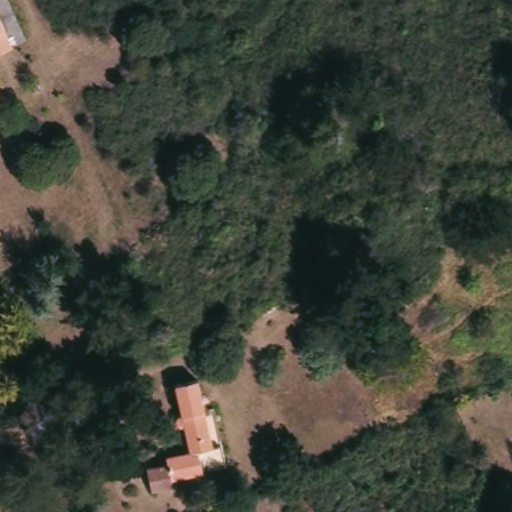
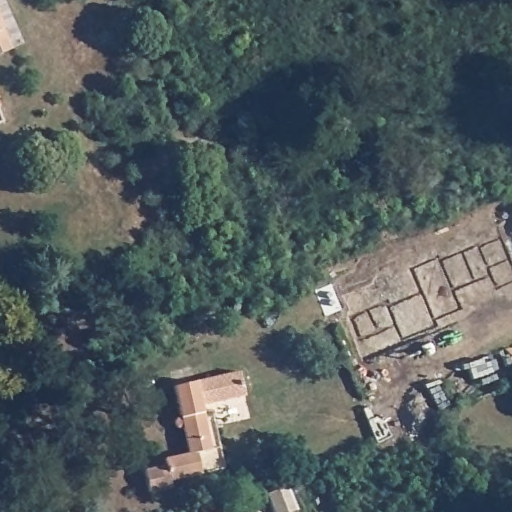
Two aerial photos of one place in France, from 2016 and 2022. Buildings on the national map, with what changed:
unchanged [(0,52),(0,27),(9,48),(0,52)]
new [(202,406),(198,381),(239,371),(245,396),(202,406)]
unchanged [(198,381),(210,449),(197,452),(200,474),(172,480),(173,487),(150,491),(146,468),(167,465),(165,457),(186,453),(182,427),(179,427),(175,425),(174,422),(175,419),(177,417),(179,415),(174,385),(198,381)]

